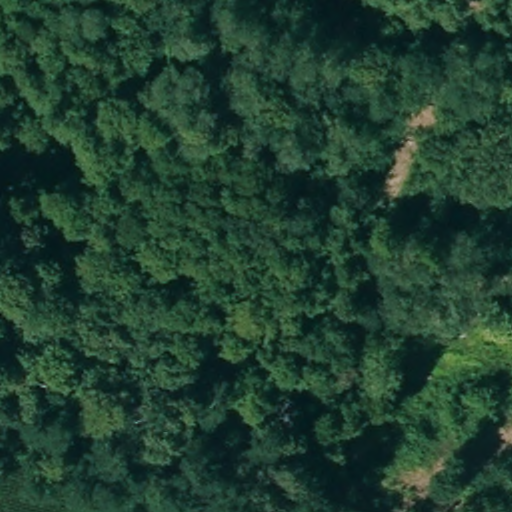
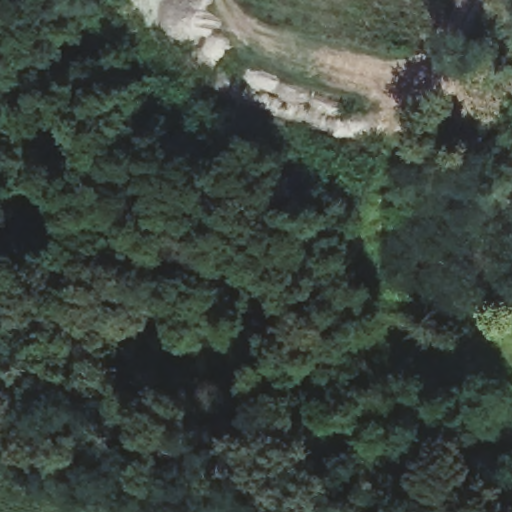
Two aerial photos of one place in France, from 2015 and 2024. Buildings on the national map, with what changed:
[]

